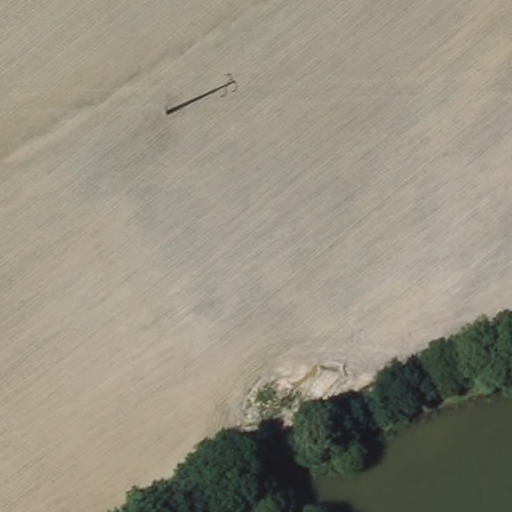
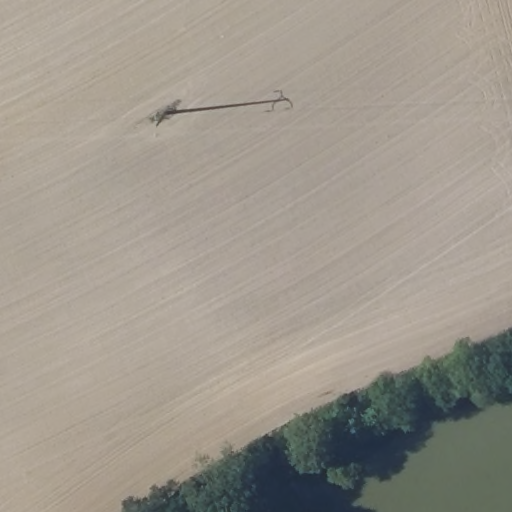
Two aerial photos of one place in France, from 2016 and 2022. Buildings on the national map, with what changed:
[]

